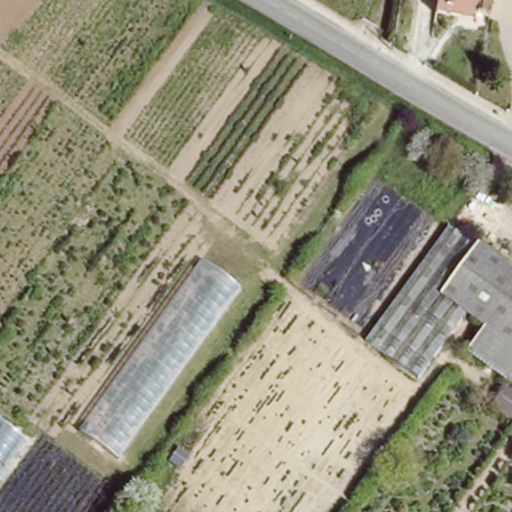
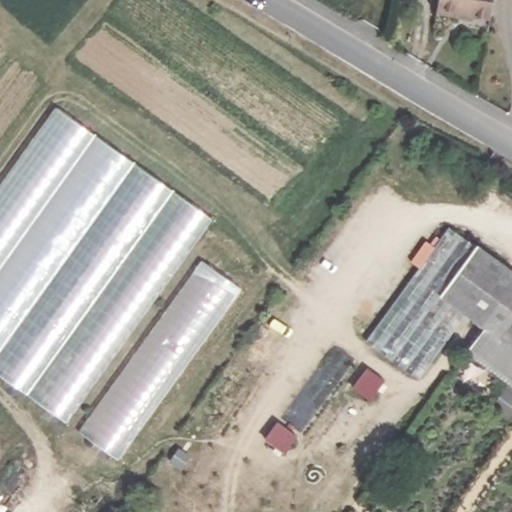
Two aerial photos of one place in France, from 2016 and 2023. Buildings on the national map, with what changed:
unchanged [(491,0),(486,16),(460,9),(459,13),(434,6),(436,0),(491,0)]
new [(58,110),(210,219),(65,424),(0,376),(0,189),(58,110)]
unchanged [(371,346),(453,231),(473,245),(437,294),(390,360),(371,346)]
unchanged [(466,352),(484,328),(464,314),(437,294),(473,245),(512,273),(512,386),(466,352)]
unchanged [(77,430),(201,257),(240,285),(116,458),(77,430)]
unchanged [(390,360),(437,294),(464,314),(416,379),(390,360)]
new [(277,421),(297,434),(285,452),(266,437),(277,421)]
demolished [(22,444),(0,474),(0,428),(22,444)]

